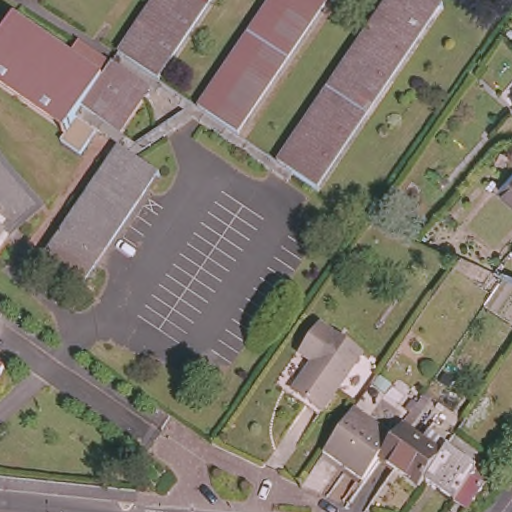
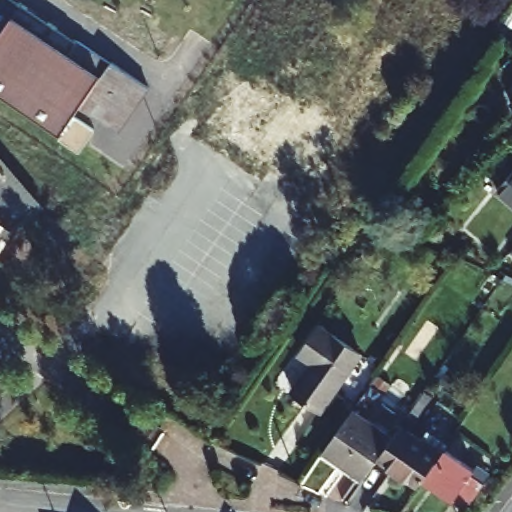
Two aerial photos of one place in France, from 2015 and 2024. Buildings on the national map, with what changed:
new [(102,78),(13,17),(0,36),(0,0),(20,0),(112,62),(102,78)]
demolished [(155,0),(211,0),(158,80),(119,54),(155,0)]
demolished [(272,0),(327,0),(236,134),(199,107),(272,0)]
demolished [(389,0),(433,0),(440,5),(316,187),(294,172),(279,162),(389,0)]
unchanged [(66,130),(0,83),(0,36),(13,17),(102,78),(112,62),(148,88),(118,132),(81,106),(75,116),(94,131),(80,152),(60,139),(66,130)]
unchanged [(511,102),(512,102),(512,103),(511,102)]
demolished [(44,261),(108,166),(117,153),(118,152),(132,161),(155,177),(81,287),(44,261)]
unchanged [(7,226),(0,236),(0,156),(37,197),(7,226)]
unchanged [(501,184),(512,172),(512,194),(501,184)]
unchanged [(365,353),(325,408),(297,388),(317,362),(305,353),(325,325),(365,353)]
unchanged [(346,416),(348,412),(371,428),(382,416),(398,426),(396,430),(375,461),(358,484),(318,456),(346,416)]
unchanged [(396,430),(436,458),(420,482),(415,490),(375,461),(396,430)]
unchanged [(420,482),(436,458),(440,453),(467,473),(470,468),(484,478),(478,486),(460,511),(420,482)]

